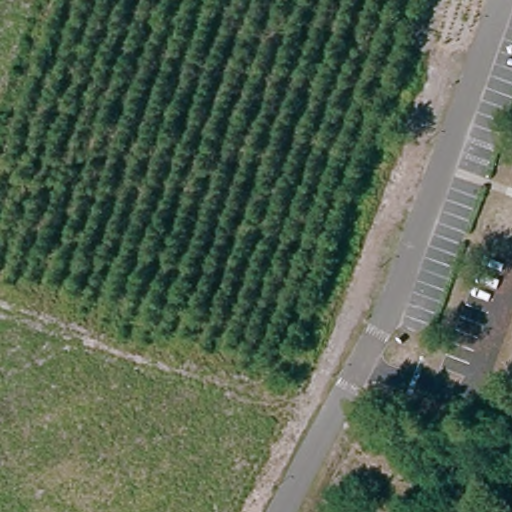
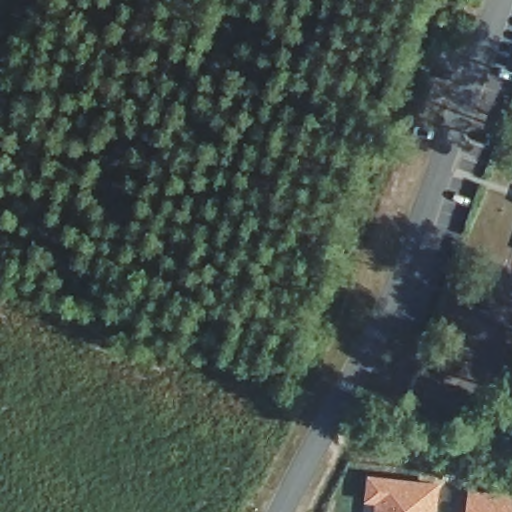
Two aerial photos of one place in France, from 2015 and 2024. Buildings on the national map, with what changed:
new [(440,482),(436,512),(373,512),(374,506),(362,505),(367,475),(440,482)]
new [(512,494),(512,512),(465,512),(467,488),(512,494)]

